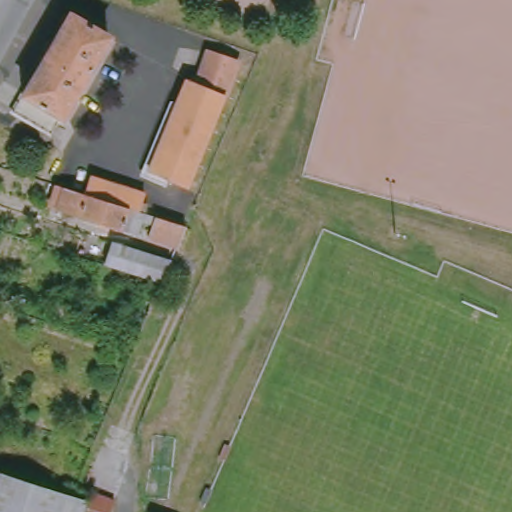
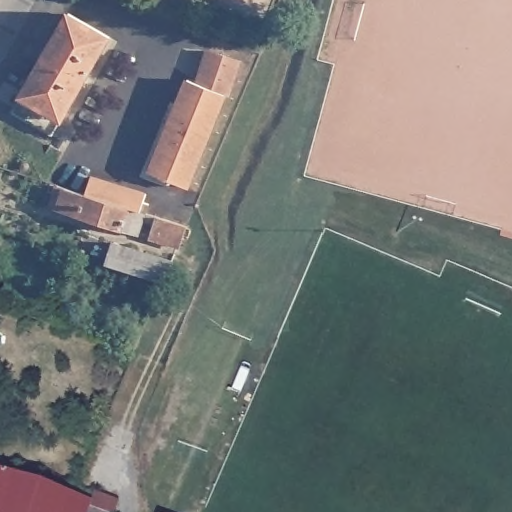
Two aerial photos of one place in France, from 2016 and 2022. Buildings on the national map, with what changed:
unchanged [(119,31),(64,129),(24,107),(80,10),(119,31)]
unchanged [(231,91),(228,90),(189,185),(152,169),(192,78),(202,81),(210,51),(241,61),(231,91)]
unchanged [(93,176),(147,194),(144,204),(149,206),(147,214),(144,213),(137,234),(122,228),(122,230),(78,216),(78,214),(60,208),(66,188),(87,195),(93,176)]
unchanged [(150,239),(157,217),(187,226),(178,248),(150,239)]
unchanged [(171,266),(164,287),(110,268),(117,248),(171,266)]
unchanged [(89,501),(86,512),(0,512),(0,472),(89,501)]
unchanged [(119,500),(115,512),(103,512),(91,508),(97,493),(119,500)]

